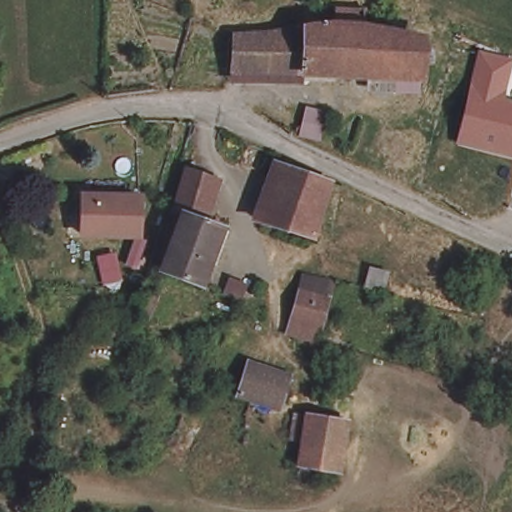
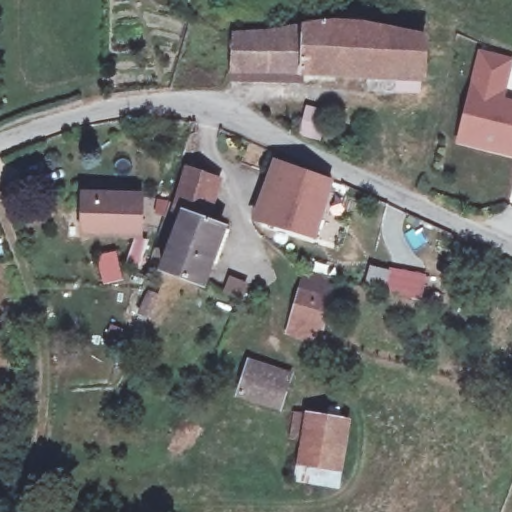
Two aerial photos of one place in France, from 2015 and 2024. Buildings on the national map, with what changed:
unchanged [(328,26),(329,10),(360,11),(360,27),(380,32),(413,40),(412,67),(412,80),(297,76),(300,30),(328,26)]
unchanged [(260,35),(278,35),(280,30),(300,30),(297,76),(225,75),(227,35),(250,35),(260,35)]
unchanged [(477,51),(512,60),(512,66),(503,99),(512,101),(512,157),(455,143),(477,51)]
unchanged [(326,178),(308,235),(255,219),(275,160),(326,178)]
unchanged [(212,177),(200,220),(170,211),(163,209),(178,167),(212,177)]
unchanged [(78,196),(137,197),(135,228),(121,227),(121,233),(78,231),(67,231),(68,216),(78,216),(78,196)]
unchanged [(212,223),(223,226),(210,265),(200,261),(193,282),(150,271),(170,211),(200,220),(212,223)]
new [(422,300),(386,292),(387,286),(366,281),(370,265),(427,275),(422,300)]
unchanged [(285,332),(289,319),(303,273),(330,283),(318,327),(314,340),(285,332)]
unchanged [(247,285),(241,302),(222,296),(230,278),(247,285)]
unchanged [(283,374),(270,404),(231,390),(242,360),(283,374)]
unchanged [(340,421),(332,470),(290,463),(298,415),(340,421)]

